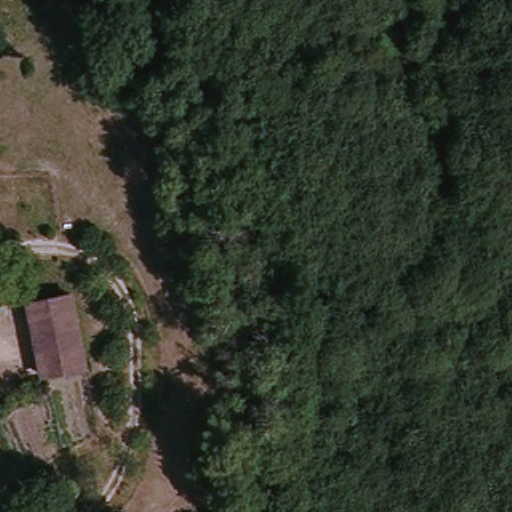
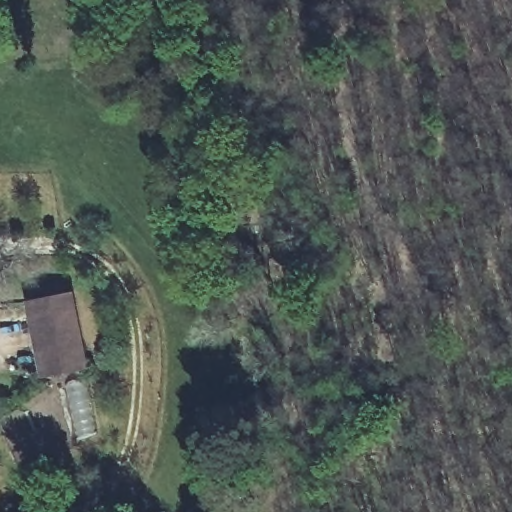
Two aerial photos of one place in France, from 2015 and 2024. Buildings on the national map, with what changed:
unchanged [(44,377),(29,301),(68,291),(84,371),(44,377)]

